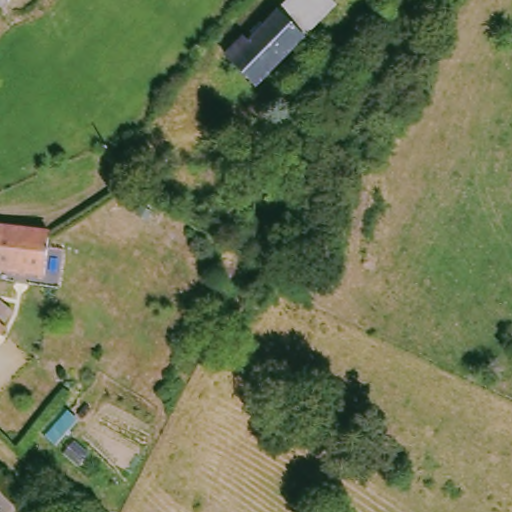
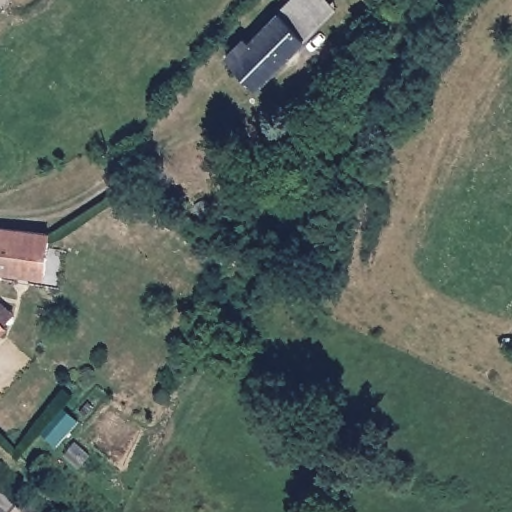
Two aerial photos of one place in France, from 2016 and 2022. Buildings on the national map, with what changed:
unchanged [(250,44),(294,0),(332,0),(337,5),(259,86),(228,56),(245,39),(250,44)]
unchanged [(53,244),(56,248),(58,253),(58,258),(55,263),(51,265),(45,266),(44,276),(0,271),(0,227),(48,233),(47,244),(53,244)]
unchanged [(0,323),(5,329),(0,336),(0,323)]
unchanged [(0,511),(1,512),(0,512),(0,511)]

